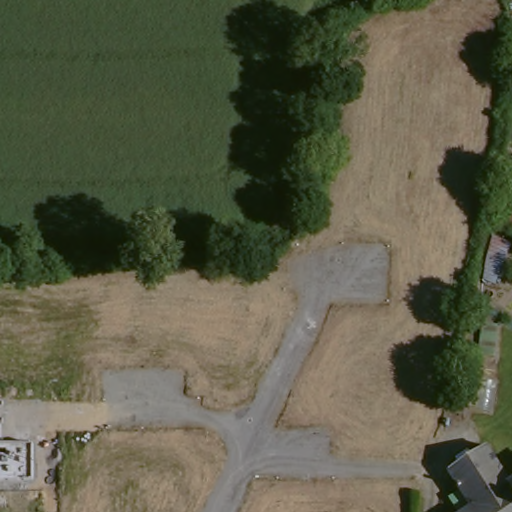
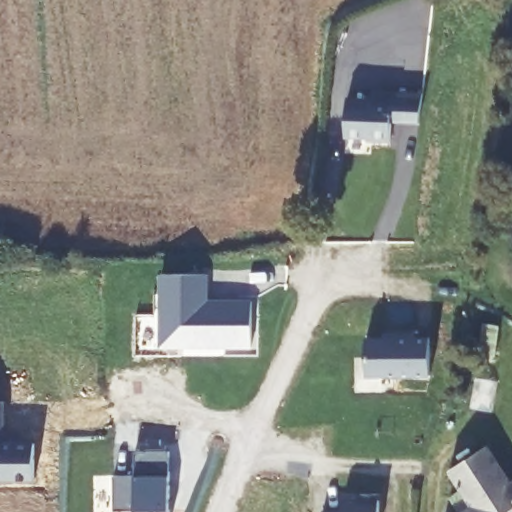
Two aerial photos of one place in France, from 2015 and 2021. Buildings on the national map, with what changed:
unchanged [(354,108),(380,110),(380,100),(430,103),(425,133),(405,131),(405,127),(397,126),(396,150),(377,148),(377,146),(352,143),(354,108)]
new [(159,277),(204,277),(204,297),(197,297),(197,305),(249,305),(249,349),(160,350),(159,277)]
unchanged [(498,356),(483,354),(486,326),(501,328),(498,356)]
new [(365,336),(384,337),(384,332),(414,332),(415,337),(429,337),(428,377),(365,377),(365,336)]
new [(12,440),(41,441),(40,476),(0,475),(0,398),(13,398),(12,440)]
unchanged [(466,489),(453,470),(490,445),(512,477),(512,485),(487,500),(495,512),(463,512),(454,497),(466,489)]
new [(132,476),(134,452),(168,453),(166,512),(131,512),(132,512),(110,511),(112,475),(132,476)]
unchanged [(495,512),(487,500),(512,485),(512,512),(495,512)]
unchanged [(363,506),(363,501),(381,501),(381,512),(345,512),(346,506),(363,506)]

